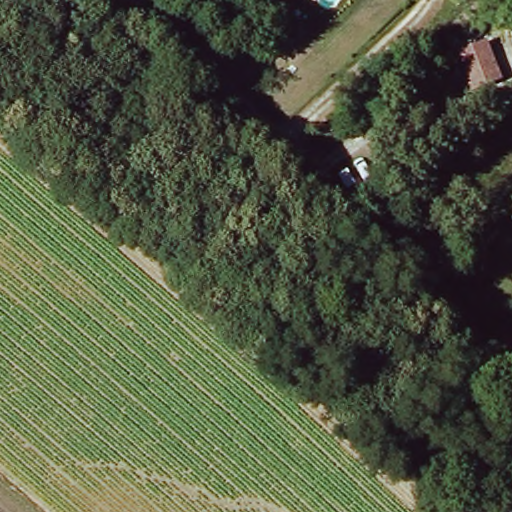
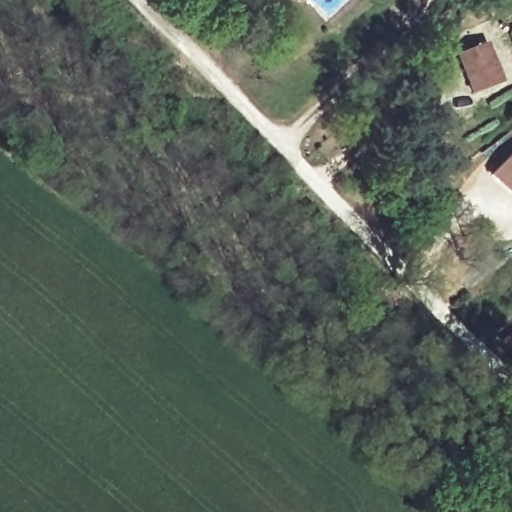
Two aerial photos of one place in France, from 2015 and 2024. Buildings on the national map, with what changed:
unchanged [(499,85),(476,93),(461,54),(471,50),(493,41),(502,64),(491,68),(499,85)]
new [(512,149),(512,190),(491,171),(512,149)]
unchanged [(506,347),(512,341),(512,352),(506,347)]

